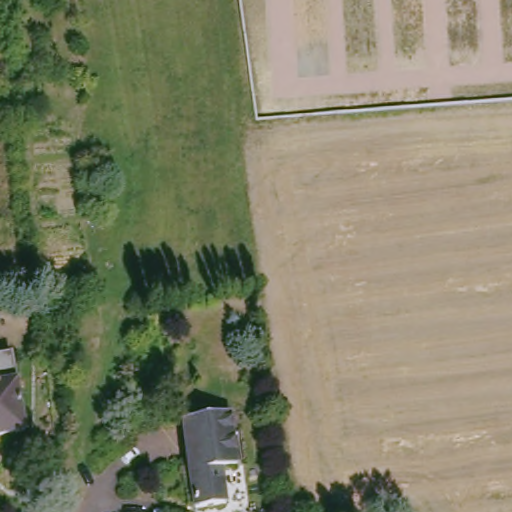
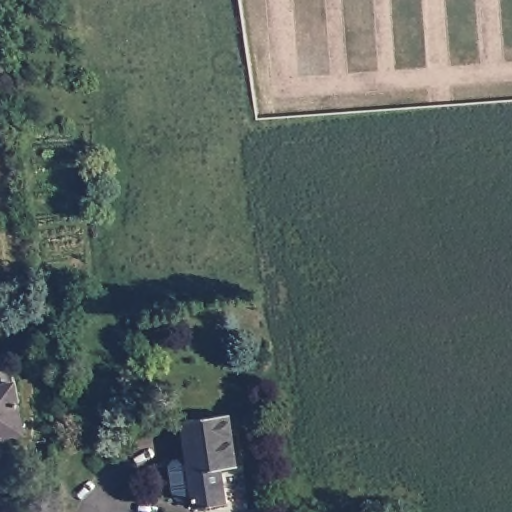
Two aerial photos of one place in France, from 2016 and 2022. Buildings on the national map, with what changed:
unchanged [(14,357),(27,428),(0,432),(0,359),(14,357)]
unchanged [(230,413),(235,463),(222,464),(225,501),(193,503),(184,417),(230,413)]

